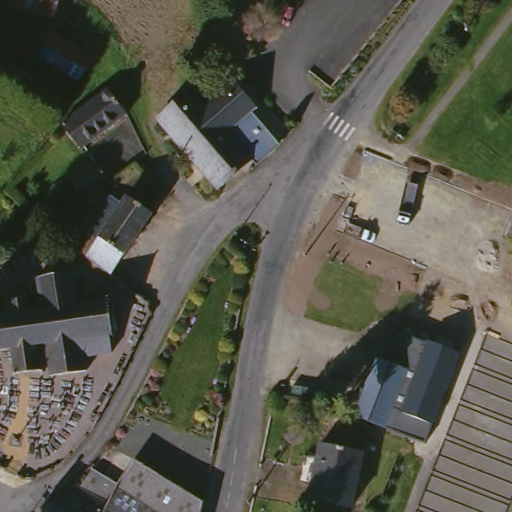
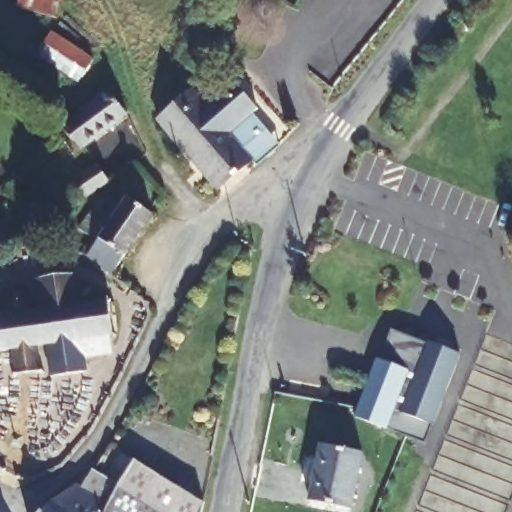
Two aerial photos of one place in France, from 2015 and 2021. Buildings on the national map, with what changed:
unchanged [(17,0),(58,0),(52,21),(14,11),(17,0)]
unchanged [(50,31),(91,59),(77,82),(35,54),(50,31)]
unchanged [(185,101),(196,113),(226,84),(251,111),(245,118),(264,139),(242,160),(251,171),(246,177),(219,201),(154,128),(185,101)]
unchanged [(99,95),(116,124),(100,135),(78,152),(62,128),(99,95)]
unchanged [(87,172),(89,171),(101,185),(80,205),(68,185),(87,172)]
unchanged [(120,193),(139,213),(151,227),(96,275),(76,251),(69,243),(120,193)]
unchanged [(37,309),(33,282),(67,277),(71,303),(80,302),(85,334),(95,333),(98,354),(85,356),(85,362),(49,369),(44,344),(30,346),(32,364),(14,367),(10,345),(0,346),(0,316),(37,309)]
unchanged [(411,338),(426,343),(427,341),(460,355),(433,426),(425,442),(387,428),(392,415),(395,410),(409,375),(399,370),(411,338)]
unchanged [(362,392),(376,358),(409,375),(395,410),(392,415),(387,428),(354,411),(362,392)]
unchanged [(344,512),(330,512),(301,505),(313,446),(355,457),(344,512)]
unchanged [(49,500),(71,486),(75,489),(87,477),(114,492),(116,492),(134,460),(195,499),(198,499),(196,512),(40,512),(43,507),(49,500)]

